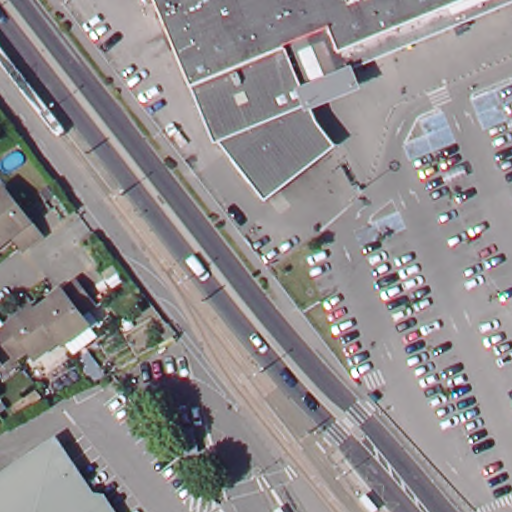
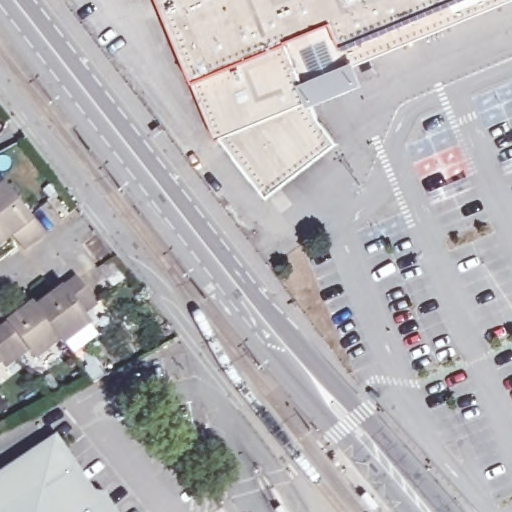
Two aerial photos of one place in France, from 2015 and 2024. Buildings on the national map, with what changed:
unchanged [(325,117),(343,140),(273,198),(228,139),(223,141),(164,0),(512,0),(512,6),(314,89),(325,117)]
unchanged [(36,221),(51,242),(52,245),(53,246),(34,259),(33,258),(28,251),(23,245),(13,251),(11,252),(0,260),(0,208),(18,195),(36,221)]
unchanged [(16,320),(21,317),(43,301),(48,298),(49,300),(51,303),(68,291),(76,285),(90,275),(94,281),(101,291),(110,302),(96,312),(103,321),(78,340),(76,336),(51,354),(44,345),(30,354),(18,362),(13,356),(0,366),(0,332),(8,326),(16,320)]
unchanged [(62,435),(115,512),(0,512),(0,476),(41,449),(62,435)]

